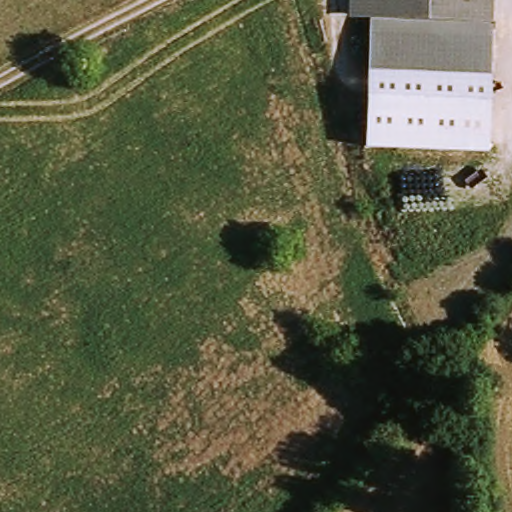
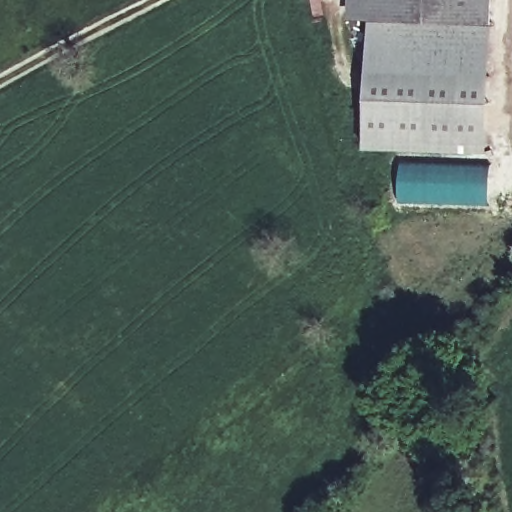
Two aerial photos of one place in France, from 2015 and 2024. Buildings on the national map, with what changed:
unchanged [(490,0),(490,21),(349,17),(349,0),(490,0)]
unchanged [(369,25),(491,29),(489,79),(368,75),(369,25)]
unchanged [(367,95),(368,75),(489,79),(489,99),(367,95)]
unchanged [(487,154),(365,149),(367,95),(489,99),(487,154)]
new [(492,204),(402,201),(403,162),(492,166),(492,204)]

